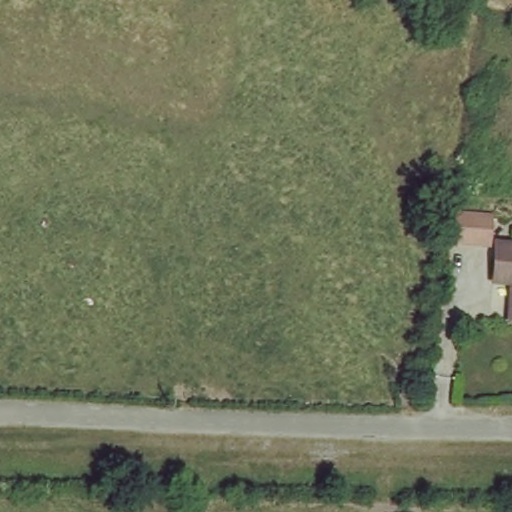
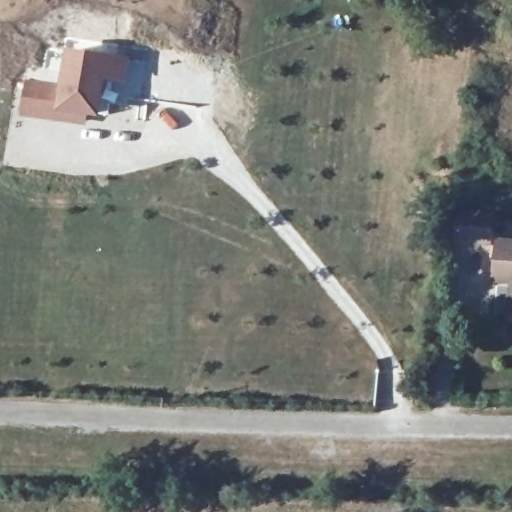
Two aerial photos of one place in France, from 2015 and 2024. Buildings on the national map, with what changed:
new [(57,88),(61,59),(126,66),(121,96),(100,95),(97,131),(18,122),(25,83),(57,88)]
unchanged [(459,213),(493,215),(492,243),(456,241),(459,213)]
unchanged [(496,254),(497,244),(512,245),(512,274),(494,273),(496,254)]
unchanged [(512,287),(512,320),(508,320),(512,287)]

